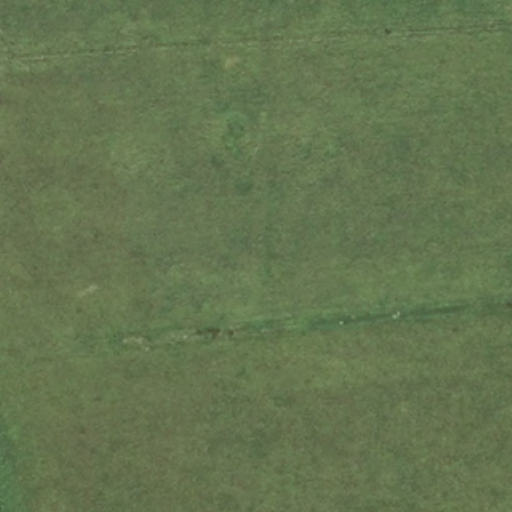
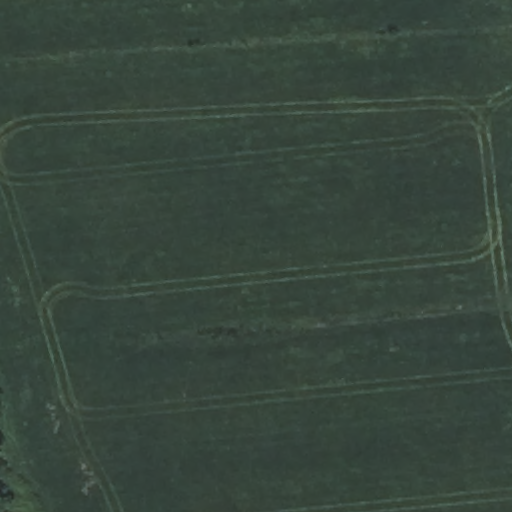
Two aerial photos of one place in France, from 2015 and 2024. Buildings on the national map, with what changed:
[]

